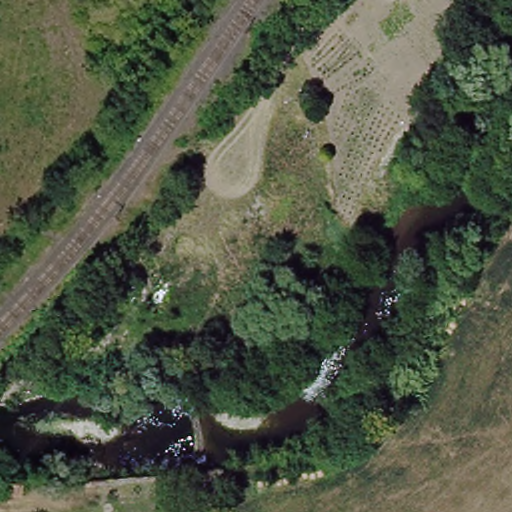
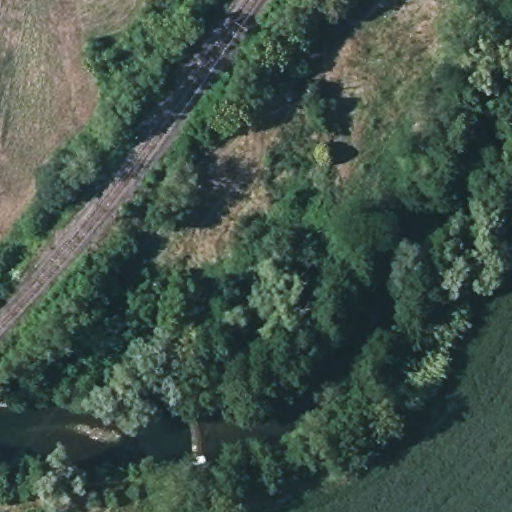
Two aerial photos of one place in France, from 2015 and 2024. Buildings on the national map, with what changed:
unchanged [(26,484),(25,500),(5,499),(5,483),(26,484)]

